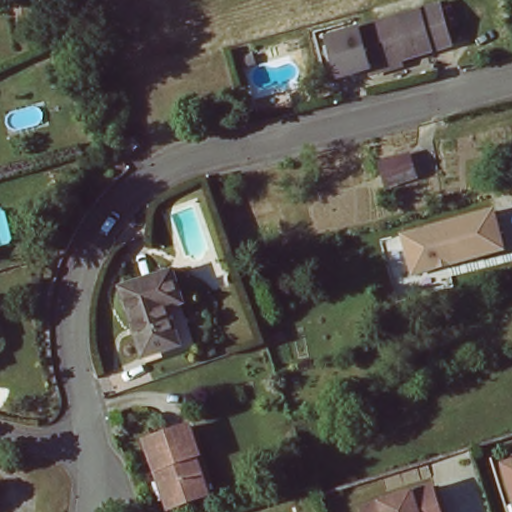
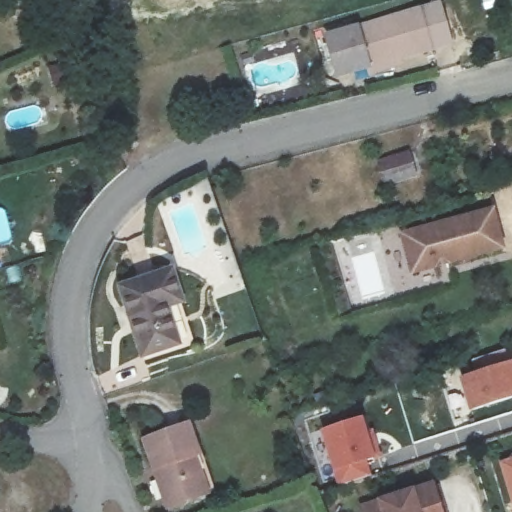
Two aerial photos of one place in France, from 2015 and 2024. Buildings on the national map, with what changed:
unchanged [(372,77),(370,70),(338,80),(327,39),(358,30),(440,9),(452,47),(400,62),(402,69),(372,77)]
unchanged [(127,124),(133,134),(122,142),(115,131),(127,124)]
unchanged [(402,148),(408,171),(379,179),(372,155),(402,148)]
unchanged [(505,249),(412,275),(400,232),(495,208),(505,249)]
unchanged [(118,289),(168,271),(179,300),(163,306),(177,344),(142,356),(118,289)]
new [(512,362),(512,401),(468,415),(458,379),(512,362)]
new [(362,418),(375,460),(367,462),(371,477),(337,486),(332,472),(320,432),(362,418)]
unchanged [(188,420),(200,450),(194,451),(208,490),(170,504),(145,436),(188,420)]
unchanged [(505,461),(512,459),(512,483),(505,461)]
unchanged [(360,503),(432,481),(441,512),(362,512),(360,503)]

